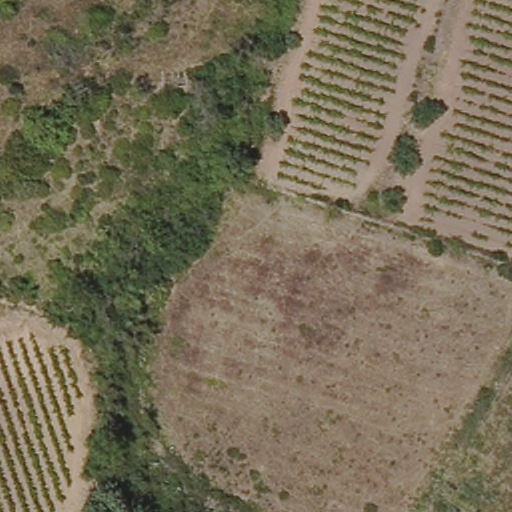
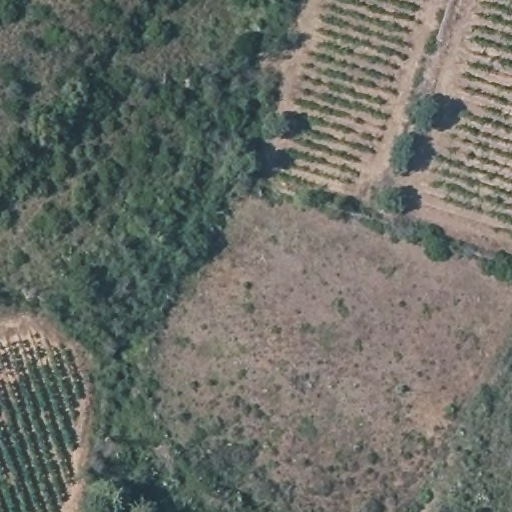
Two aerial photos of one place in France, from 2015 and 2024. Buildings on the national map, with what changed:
[]

